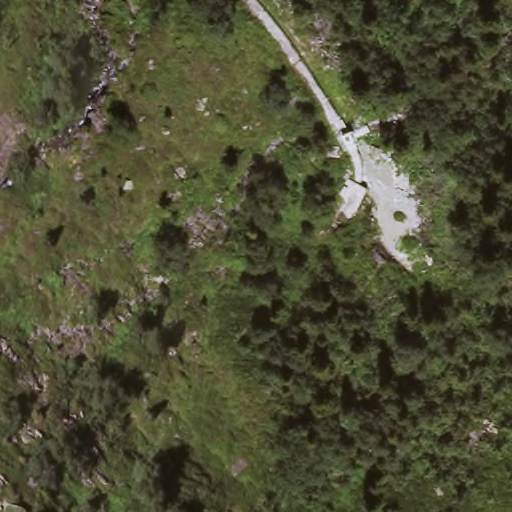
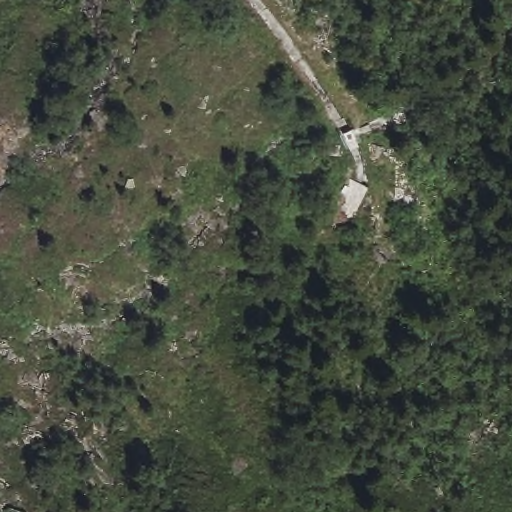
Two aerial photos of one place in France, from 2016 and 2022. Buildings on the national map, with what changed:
unchanged [(329,210),(346,177),(368,189),(351,220),(329,210)]

